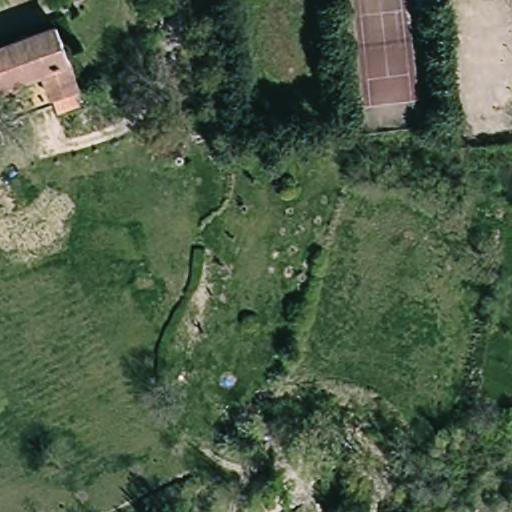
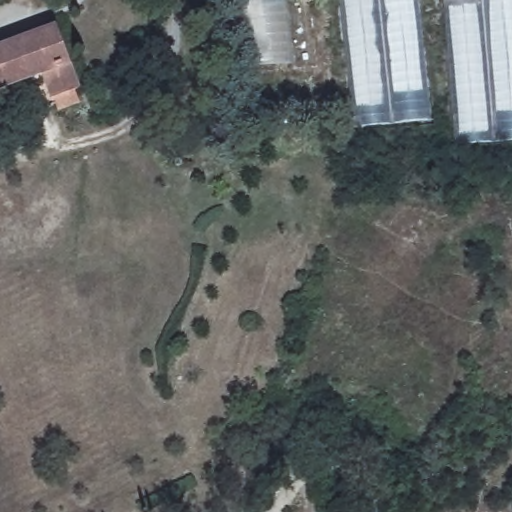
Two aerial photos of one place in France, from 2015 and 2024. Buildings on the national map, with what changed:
new [(432,121),(355,130),(340,0),(419,0),(432,121)]
new [(456,146),(444,0),(512,0),(512,142),(456,146)]
unchanged [(55,97),(45,72),(0,89),(0,44),(56,22),(81,87),(76,89),(81,102),(59,111),(55,97)]

